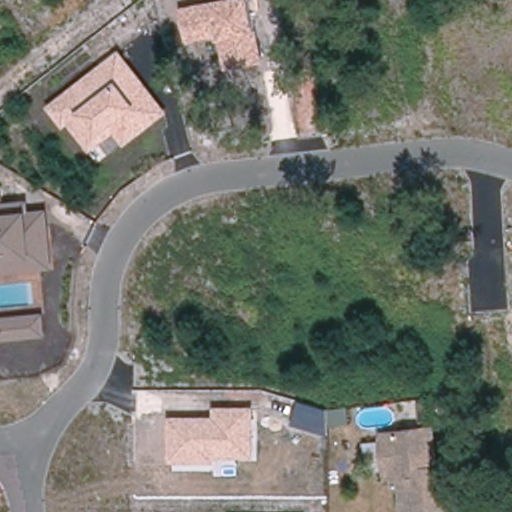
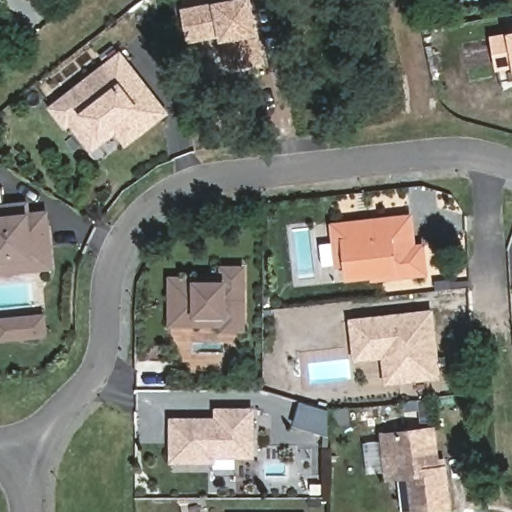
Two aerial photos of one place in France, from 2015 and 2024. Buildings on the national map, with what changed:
unchanged [(210,2),(221,0),(251,0),(258,33),(261,63),(225,71),(220,40),(186,42),(180,9),(210,2)]
new [(498,39),(512,37),(512,66),(503,68),(498,39)]
unchanged [(64,130),(47,108),(120,51),(169,113),(125,147),(115,135),(91,154),(69,125),(64,130)]
unchanged [(1,188),(2,203),(28,201),(29,211),(47,210),(52,269),(0,275),(0,188),(1,188)]
new [(369,223),(412,218),(416,249),(425,247),(428,273),(377,279),(377,275),(352,278),(350,264),(341,265),(337,227),(360,224),(369,223)]
new [(220,266),(246,265),(248,334),(221,334),(221,326),(169,327),(169,276),(220,276),(220,266)]
unchanged [(47,338),(0,342),(0,317),(44,313),(47,338)]
new [(390,355),(359,359),(355,322),(434,313),(436,330),(438,348),(442,377),(402,381),(402,379),(393,380),(390,355)]
unchanged [(347,407),(348,424),(327,427),(328,436),(291,426),(299,401),(328,410),(347,407)]
unchanged [(254,458),(215,458),(214,463),(169,464),(169,417),(213,417),(214,408),(254,407),(254,458)]
unchanged [(450,510),(433,512),(405,512),(401,477),(388,479),(383,435),(434,429),(439,469),(445,468),(450,510)]

